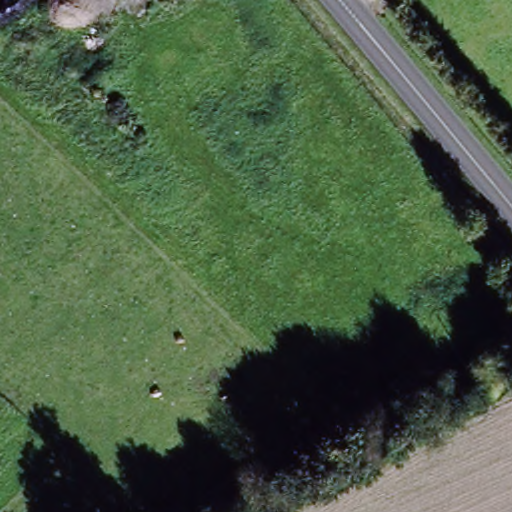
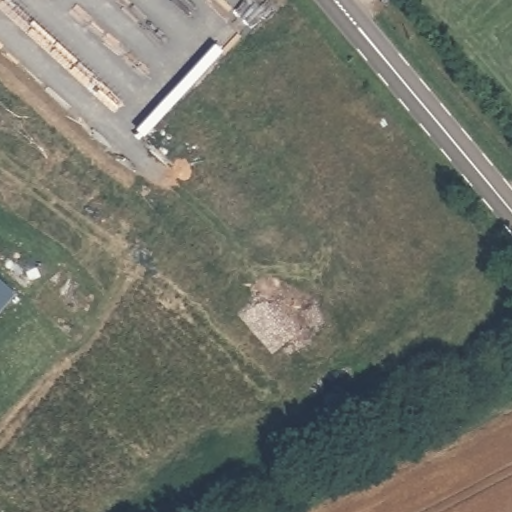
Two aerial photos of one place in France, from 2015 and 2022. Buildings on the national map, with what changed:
new [(0,311),(0,282),(15,294),(0,311)]

